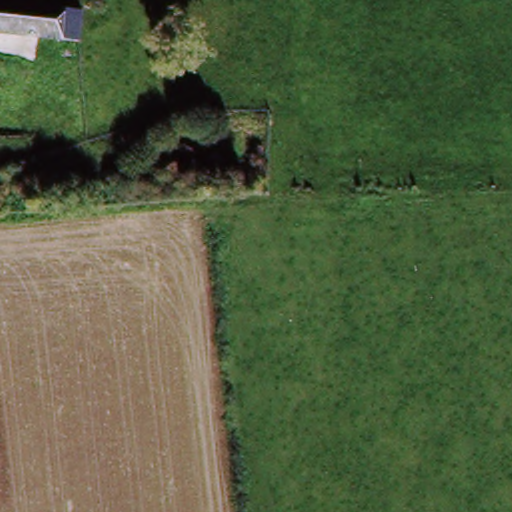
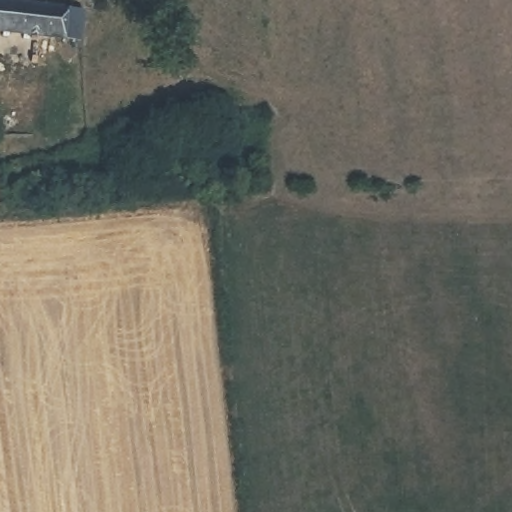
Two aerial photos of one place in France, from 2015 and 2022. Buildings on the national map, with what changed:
unchanged [(72,7),(79,7),(75,42),(0,35),(0,0),(65,6),(72,7)]

